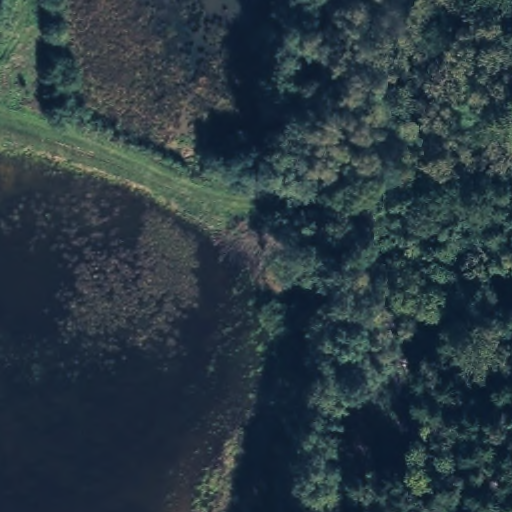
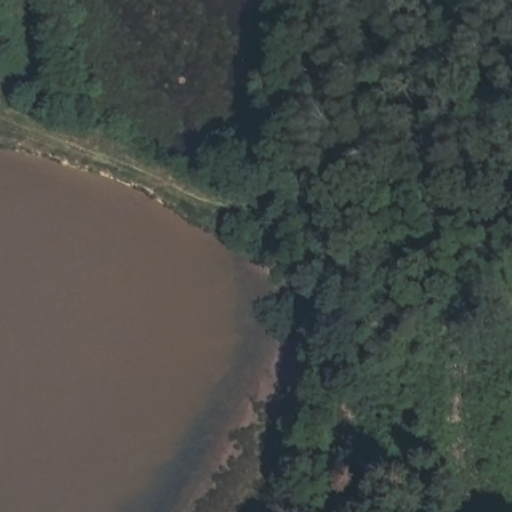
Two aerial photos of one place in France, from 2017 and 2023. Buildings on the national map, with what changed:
unchanged [(14,85),(26,61),(65,77),(57,101),(14,85)]

